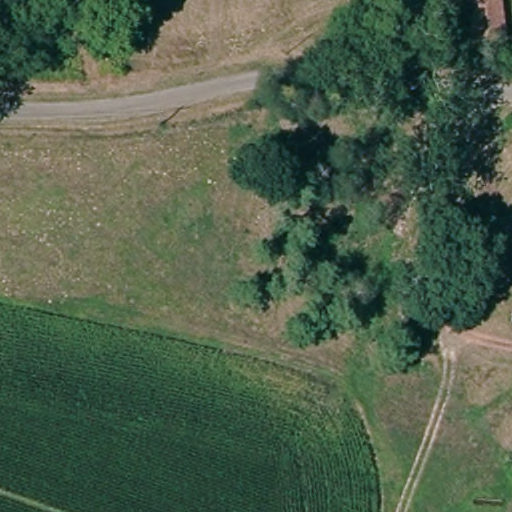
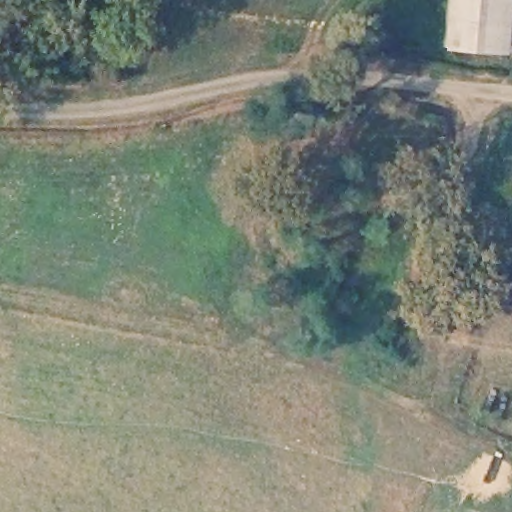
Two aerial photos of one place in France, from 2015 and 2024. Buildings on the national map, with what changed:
new [(441,48),(446,0),(510,0),(506,54),(441,48)]

